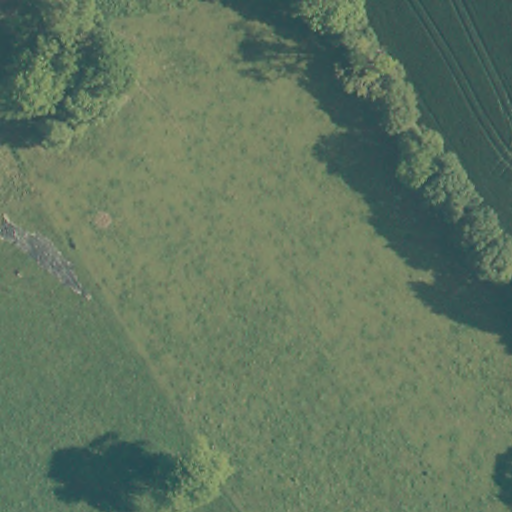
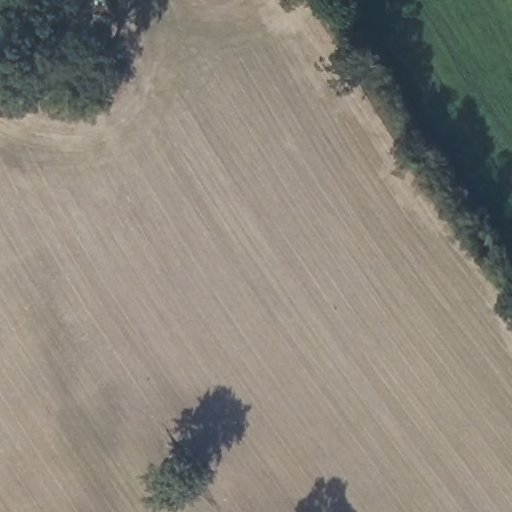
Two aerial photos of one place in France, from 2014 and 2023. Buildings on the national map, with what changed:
unchanged [(80,134),(65,119),(99,85),(113,100),(80,134)]

